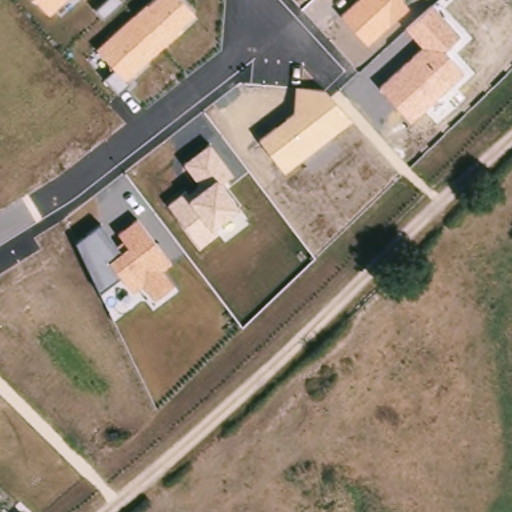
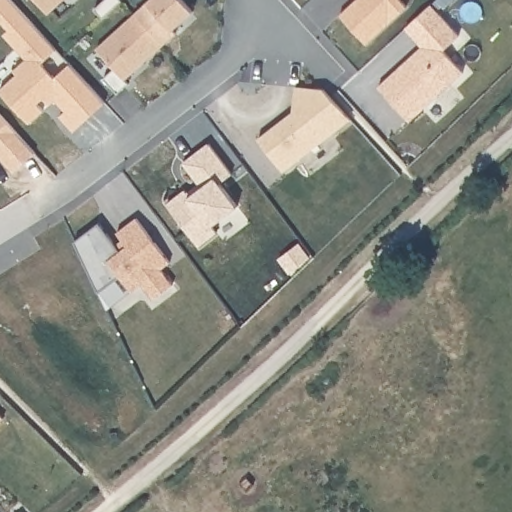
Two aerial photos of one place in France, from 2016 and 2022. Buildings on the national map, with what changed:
new [(66,110),(57,101),(50,106),(44,99),(38,104),(44,111),(30,124),(0,92),(0,90),(18,75),(14,70),(26,60),(5,35),(9,29),(0,19),(0,0),(12,0),(56,50),(41,62),(55,77),(70,63),(105,101),(74,131),(60,116),(66,110)]
unchanged [(66,0),(49,15),(36,0),(66,0)]
unchanged [(113,71),(94,50),(134,11),(138,15),(149,2),(152,0),(184,0),(197,14),(175,35),(128,81),(130,84),(118,92),(104,79),(113,71)]
unchanged [(354,0),(404,0),(410,7),(367,46),(339,14),(354,0)]
unchanged [(444,47),(464,72),(411,121),(378,85),(420,46),(404,28),(432,4),(458,34),(444,47)]
unchanged [(292,112),(296,84),(325,90),(350,120),(285,172),(259,139),(292,112)]
new [(45,154),(24,172),(5,152),(0,157),(0,123),(9,115),(45,154)]
unchanged [(185,191),(189,197),(202,187),(184,162),(209,143),(233,172),(220,181),(242,208),(217,228),(221,232),(200,249),(168,205),(185,191)]
unchanged [(76,241),(99,222),(116,245),(123,240),(116,231),(139,216),(173,262),(164,270),(175,283),(155,299),(144,283),(131,293),(119,276),(99,291),(76,241)]

